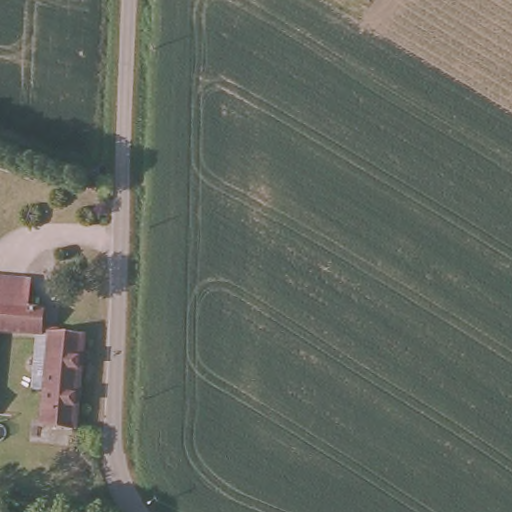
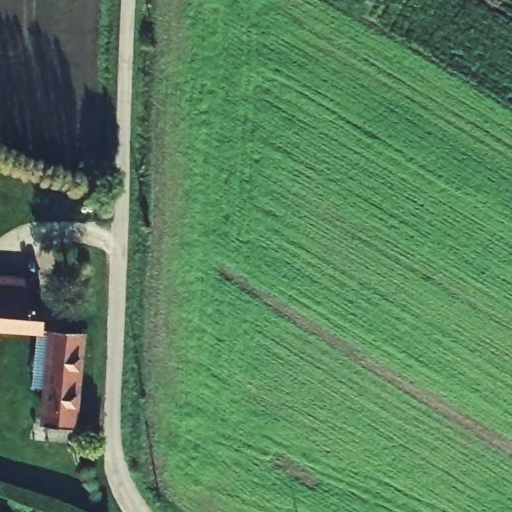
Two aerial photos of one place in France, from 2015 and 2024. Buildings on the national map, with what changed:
unchanged [(23,298),(21,311),(0,309),(0,281),(25,283),(23,298)]
unchanged [(23,298),(34,300),(33,313),(38,313),(35,332),(0,329),(0,309),(21,311),(23,298)]
unchanged [(69,431),(42,428),(44,395),(30,395),(34,349),(48,351),(49,334),(78,337),(69,431)]

